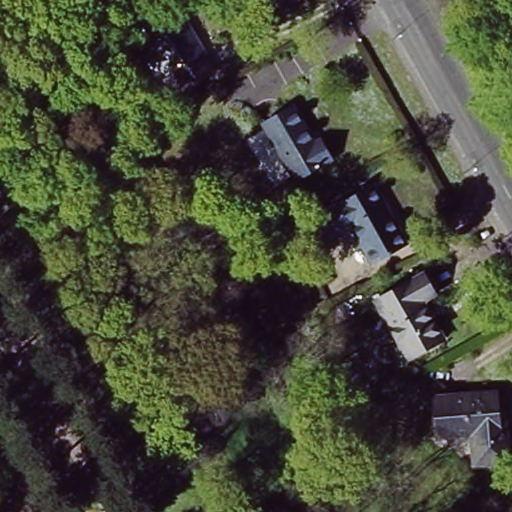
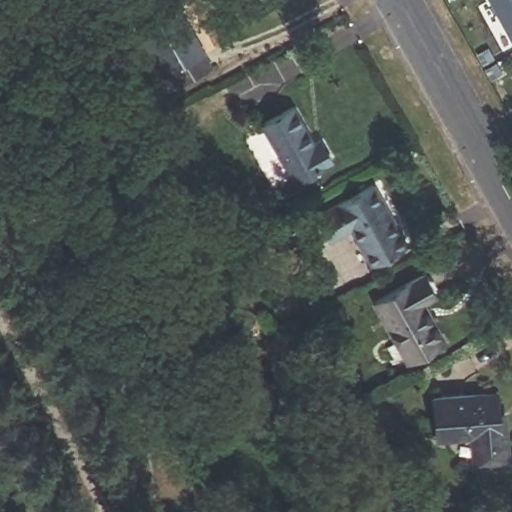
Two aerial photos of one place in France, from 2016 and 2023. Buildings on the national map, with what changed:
new [(488,0),(512,0),(512,44),(488,0)]
unchanged [(212,69),(175,89),(170,78),(167,80),(139,31),(177,9),(212,69)]
unchanged [(293,113),(313,150),(319,147),(329,165),(292,185),(261,130),(293,113)]
unchanged [(368,182),(402,243),(368,263),(347,226),(326,237),(313,213),(368,182)]
unchanged [(371,302),(418,275),(430,294),(417,302),(440,342),(405,361),(371,302)]
unchanged [(511,469),(469,469),(469,439),(432,439),(428,394),(497,392),(511,469)]

